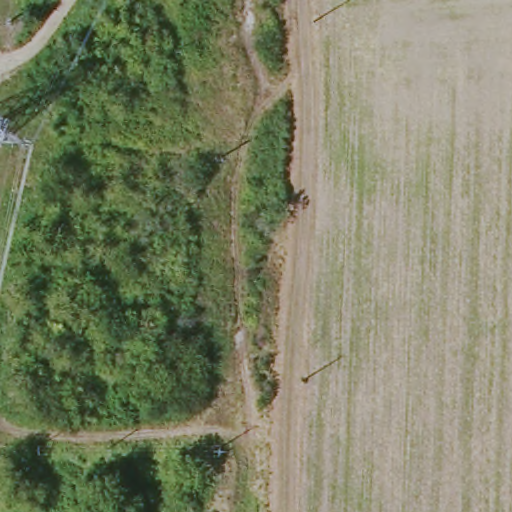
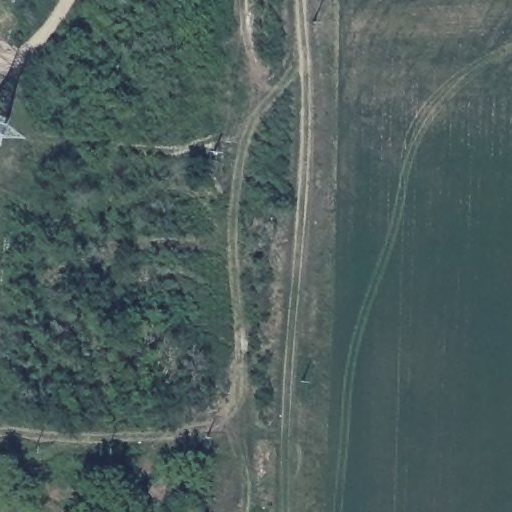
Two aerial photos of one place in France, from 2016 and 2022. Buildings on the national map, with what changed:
[]

